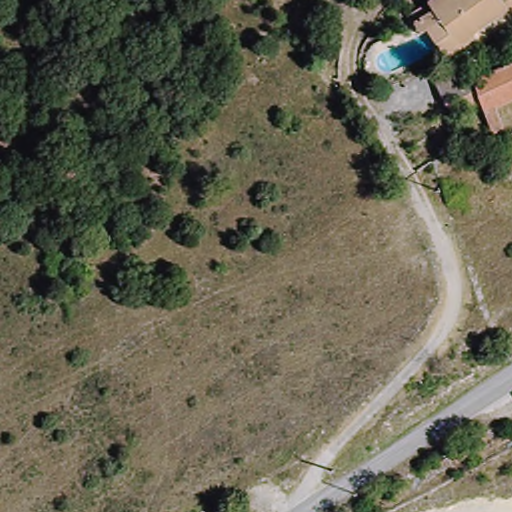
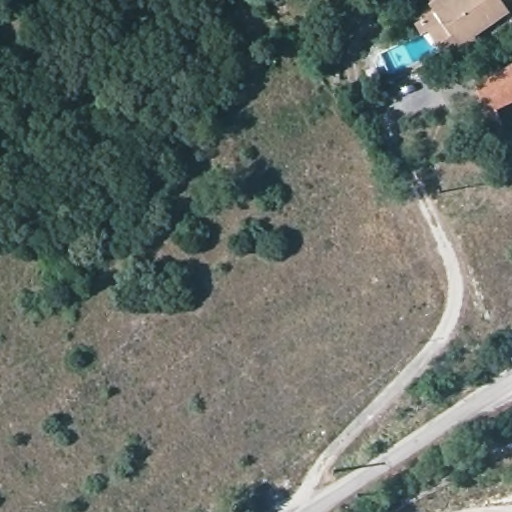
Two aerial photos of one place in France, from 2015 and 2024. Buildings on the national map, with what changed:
unchanged [(427,0),(440,0),(431,6),(427,0)]
unchanged [(440,23),(434,14),(455,0),(458,0),(461,4),(467,0),(512,0),(512,23),(463,57),(454,44),(440,50),(430,28),(440,23)]
unchanged [(499,103),(506,123),(495,128),(477,75),(512,58),(512,97),(499,103)]

